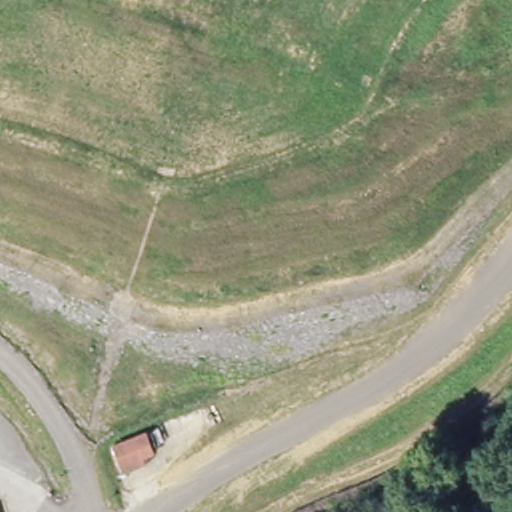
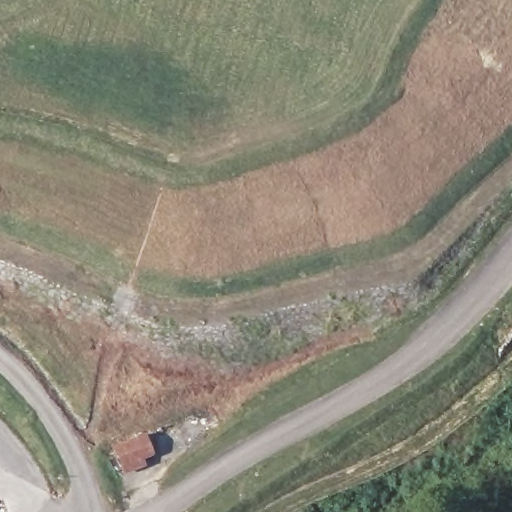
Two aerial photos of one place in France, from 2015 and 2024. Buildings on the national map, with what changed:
unchanged [(143,434),(153,459),(145,461),(148,469),(121,478),(110,449),(143,434)]

